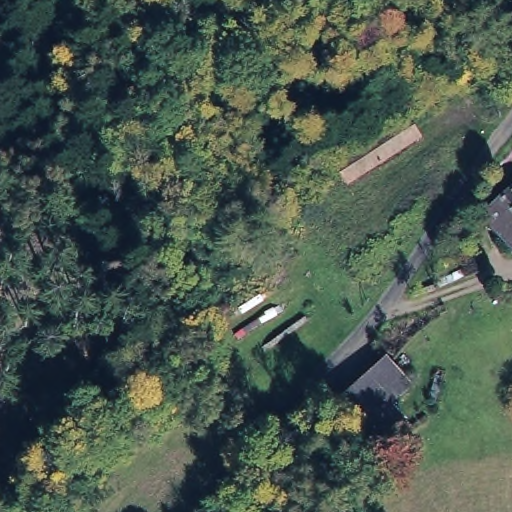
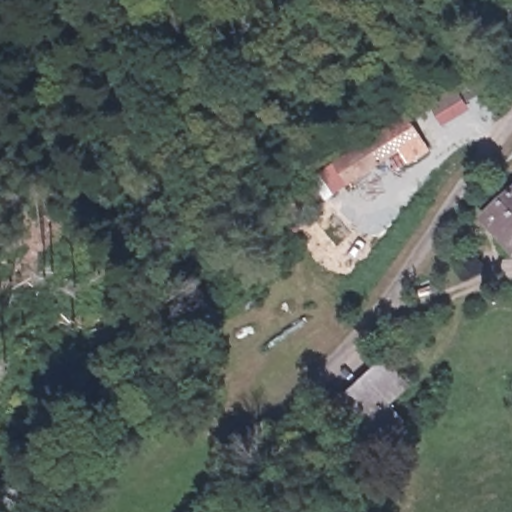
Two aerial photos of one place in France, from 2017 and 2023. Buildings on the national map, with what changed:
unchanged [(417,134),(345,178),(337,161),(409,118),(417,134)]
unchanged [(512,180),(512,260),(473,218),(512,180)]
unchanged [(383,351),(414,388),(393,405),(407,422),(373,448),(333,398),(383,351)]

